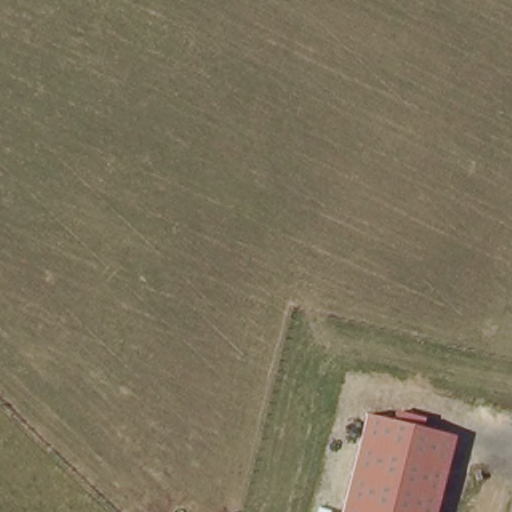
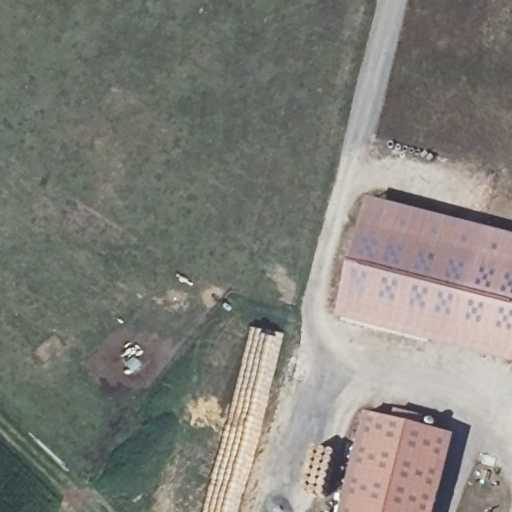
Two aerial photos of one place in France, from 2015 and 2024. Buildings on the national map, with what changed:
new [(338,321),(369,200),(512,236),(512,365),(338,321)]
unchanged [(342,512),(367,415),(393,421),(395,412),(426,418),(423,428),(455,437),(436,512),(342,512)]

